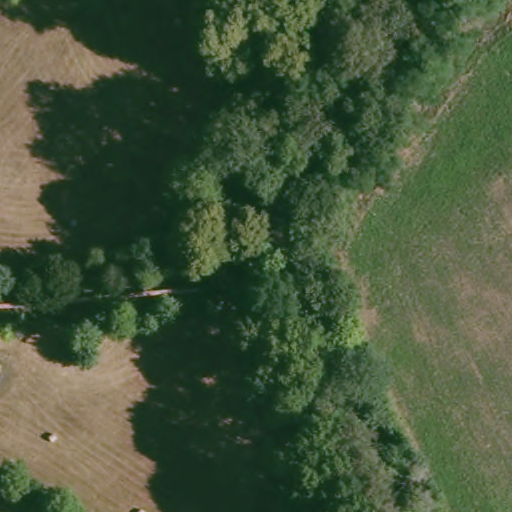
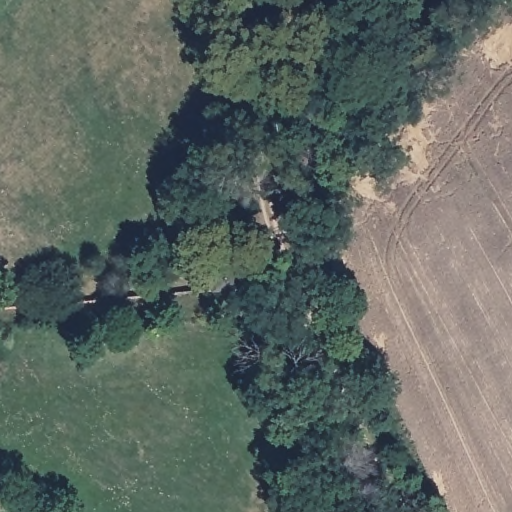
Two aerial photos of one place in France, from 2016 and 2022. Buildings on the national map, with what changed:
unchanged [(236,289),(211,290),(208,267),(232,264),(236,289)]

